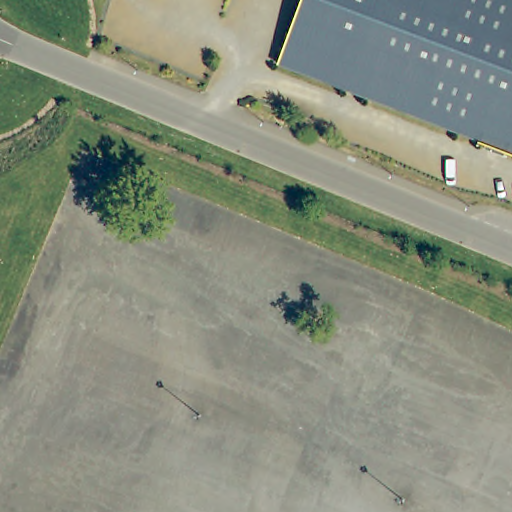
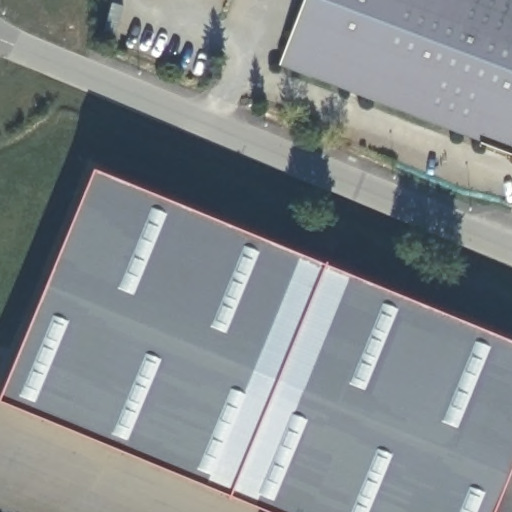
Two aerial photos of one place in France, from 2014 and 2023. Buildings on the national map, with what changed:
unchanged [(512,0),(512,151),(278,64),(302,0),(512,0)]
new [(512,341),(512,463),(492,512),(271,512),(0,400),(0,391),(92,168),(512,341)]

